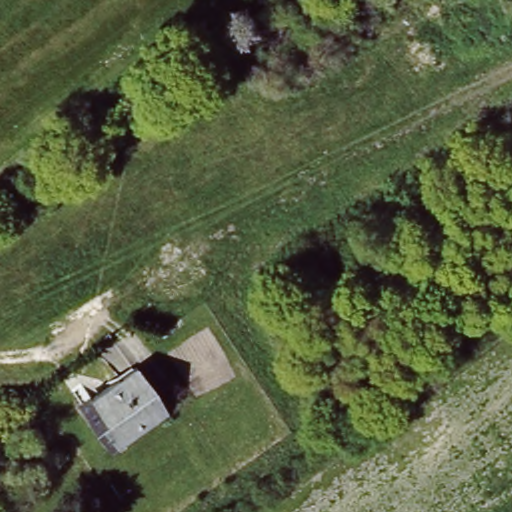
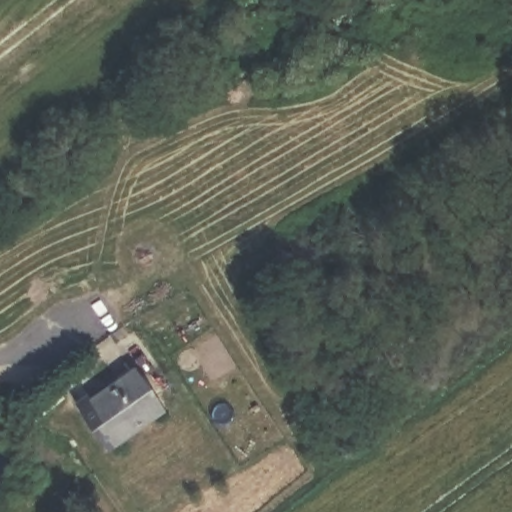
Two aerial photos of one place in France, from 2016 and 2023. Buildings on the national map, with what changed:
unchanged [(139,366),(165,406),(114,443),(86,403),(139,366)]

